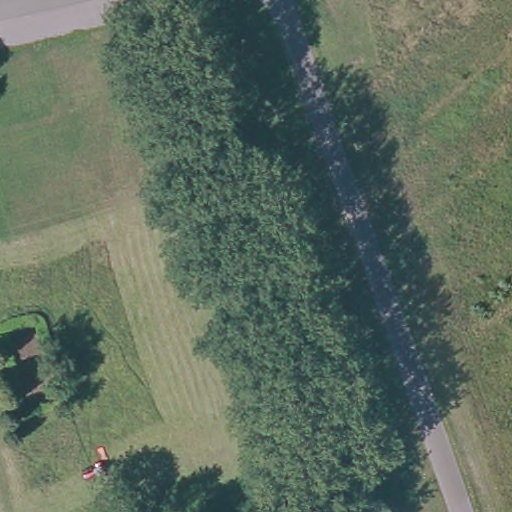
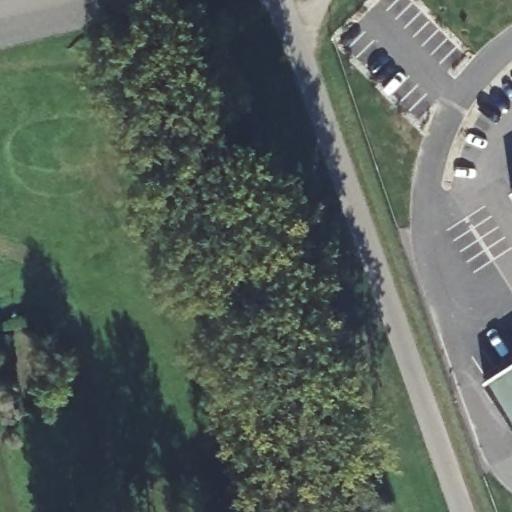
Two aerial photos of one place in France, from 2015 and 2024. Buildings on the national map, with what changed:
new [(512,188),(512,192),(510,189),(512,188)]
new [(482,377),(512,359),(512,422),(482,377)]

